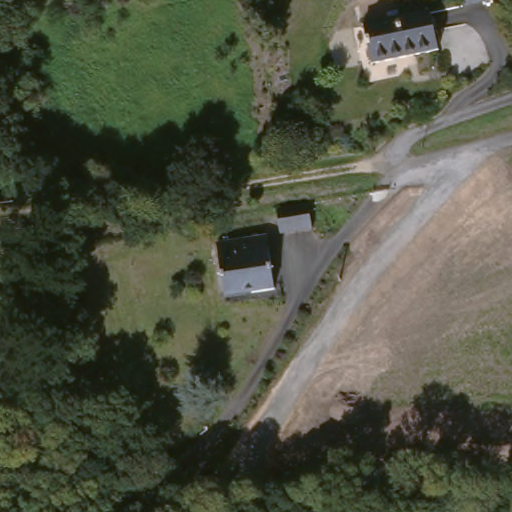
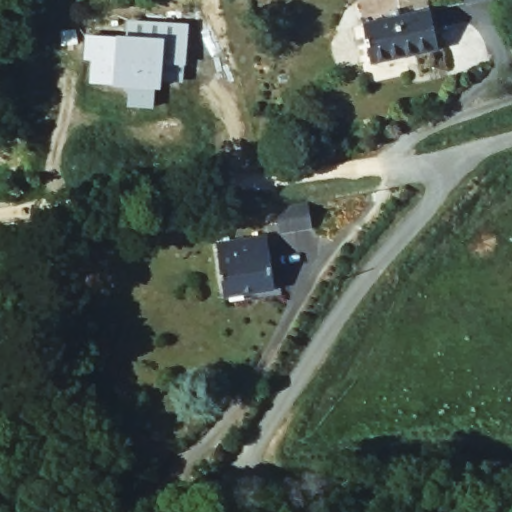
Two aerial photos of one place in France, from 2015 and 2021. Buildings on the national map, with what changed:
unchanged [(428,8),(435,50),(370,64),(361,21),(428,8)]
new [(95,38),(134,41),(135,25),(193,30),(190,65),(167,63),(165,89),(157,88),(155,110),(136,108),(137,94),(130,86),(98,83),(100,59),(92,58),(95,38)]
unchanged [(317,201),(317,224),(287,230),(283,207),(317,201)]
unchanged [(274,234),(280,288),(225,302),(217,246),(274,234)]

